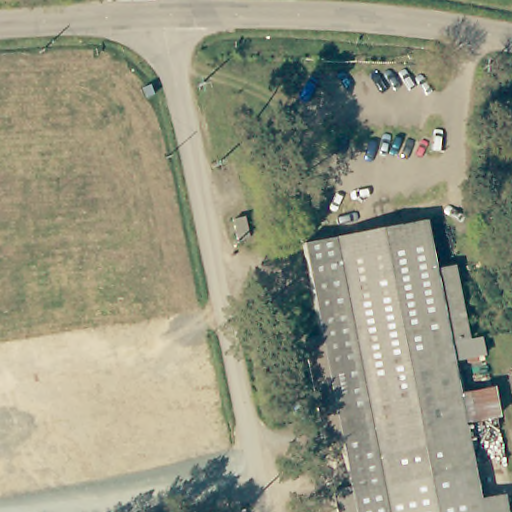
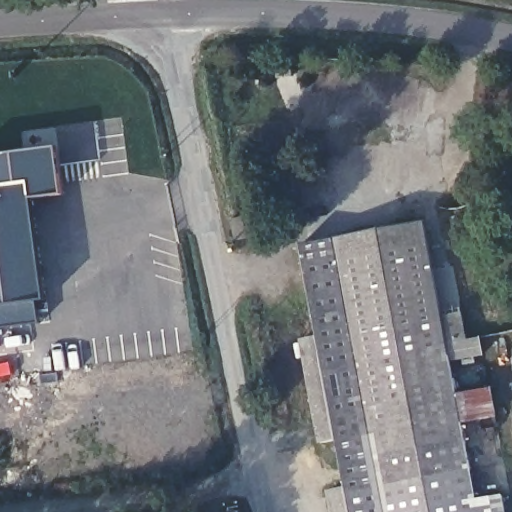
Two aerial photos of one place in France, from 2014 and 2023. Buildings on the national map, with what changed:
new [(47,300),(0,306),(0,157),(58,149),(65,195),(34,201),(47,300)]
unchanged [(454,400),(458,419),(335,442),(316,446),(296,346),(315,342),(297,248),(418,222),(428,273),(445,270),(451,268),(465,342),(460,343),(442,346),(454,400)]
unchanged [(347,490),(335,442),(458,419),(454,400),(471,397),(485,394),(492,423),(477,426),(460,430),(465,455),(476,453),(480,470),(468,472),(470,477),(476,512),(330,512),(326,494),(347,490)]
unchanged [(487,474),(495,473),(502,512),(476,512),(470,477),(487,474)]

